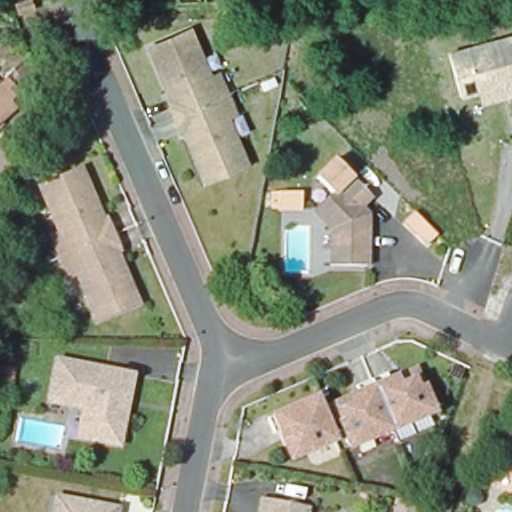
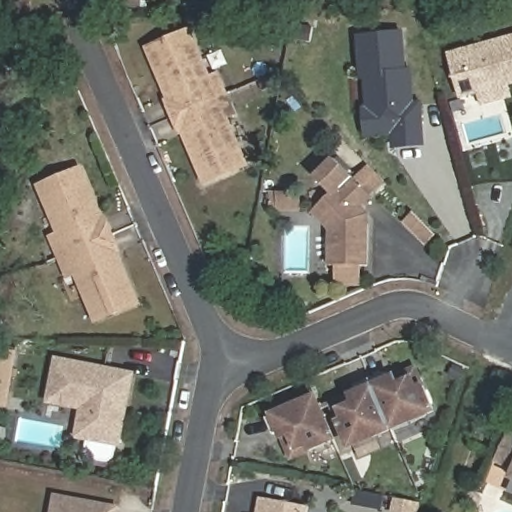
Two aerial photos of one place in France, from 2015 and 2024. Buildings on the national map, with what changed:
unchanged [(33,5),(49,0),(51,0),(56,16),(38,20),(33,5)]
new [(358,35),(405,31),(408,70),(413,69),(415,103),(423,102),(426,147),(394,150),(393,135),(366,137),(363,106),(367,106),(365,80),(361,80),(358,35)]
unchanged [(175,122),(146,54),(187,36),(208,85),(217,81),(226,101),(234,120),(224,125),(245,171),(204,189),(175,122)]
unchanged [(512,88),(511,88),(512,94),(512,101),(481,108),(478,97),(460,101),(449,54),(512,36),(512,88)]
unchanged [(20,110),(0,127),(0,90),(20,110)]
unchanged [(315,178),(334,159),(354,179),(373,198),(362,209),(366,212),(366,224),(369,225),(369,267),(332,267),(332,230),(315,213),(332,195),(315,178)]
unchanged [(78,270),(70,273),(62,254),(54,235),(62,232),(41,181),(81,165),(110,233),(139,299),(98,315),(78,270)]
unchanged [(82,410),(48,405),(56,363),(130,377),(127,394),(123,417),(118,446),(86,440),(77,439),(82,410)]
unchanged [(336,403),(362,392),(360,385),(375,380),(391,373),(393,380),(420,370),(427,389),(437,413),(395,430),(353,446),(343,422),(336,403)]
unchanged [(285,431),(277,434),(271,418),(321,397),(339,442),(315,452),(297,460),(285,431)]
unchanged [(506,433),(511,435),(512,435),(512,466),(496,459),(506,433)]
unchanged [(512,474),(512,475),(511,475),(512,474)]
unchanged [(117,512),(52,512),(54,500),(117,512)]
unchanged [(258,512),(260,503),(307,512),(258,512)]

